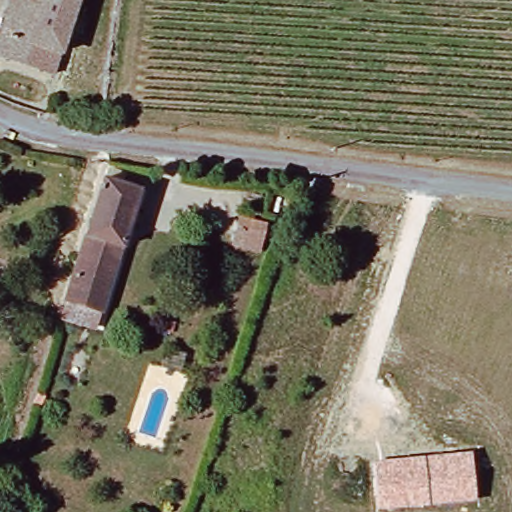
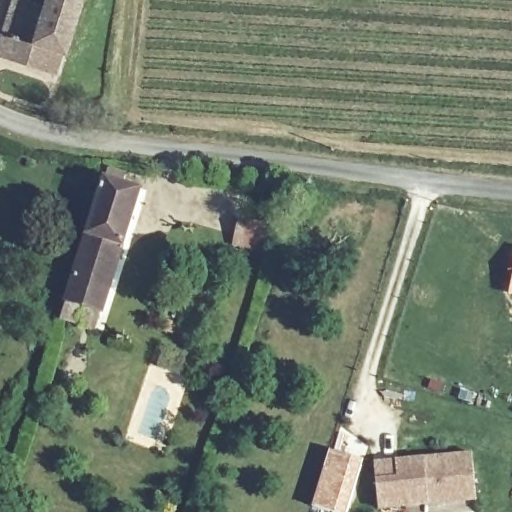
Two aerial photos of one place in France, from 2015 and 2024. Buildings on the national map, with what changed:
unchanged [(6,0),(74,0),(52,74),(0,58),(0,20),(6,0)]
unchanged [(52,318),(59,298),(95,181),(137,194),(101,310),(95,330),(52,318)]
unchanged [(272,234),(265,262),(240,255),(247,228),(272,234)]
new [(512,295),(507,294),(512,272),(512,295)]
unchanged [(143,324),(150,304),(176,312),(187,315),(180,337),(170,333),(143,324)]
new [(329,451),(363,461),(347,512),(331,512),(313,506),(329,451)]
unchanged [(472,453),(476,499),(377,510),(373,462),(472,453)]

